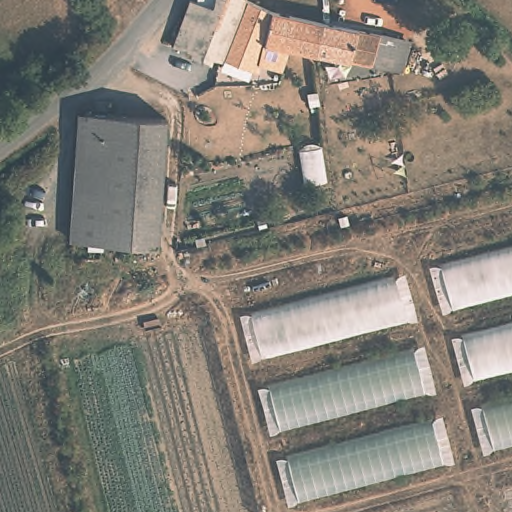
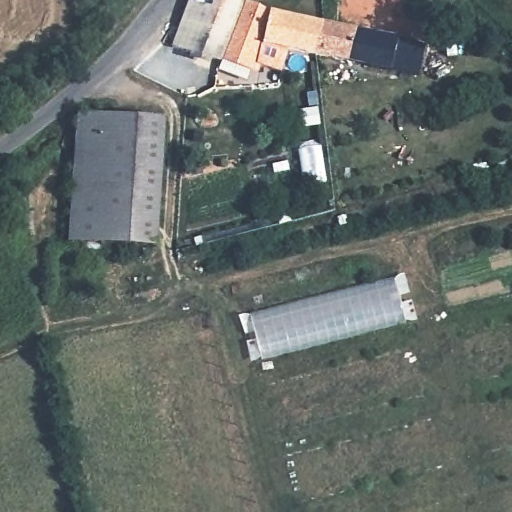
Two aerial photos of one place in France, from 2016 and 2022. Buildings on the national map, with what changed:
unchanged [(272,13),(301,19),(327,24),(320,56),(290,50),(286,64),(283,74),(261,67),(259,72),(223,61),(221,66),(171,50),(182,6),(183,2),(185,2),(212,10),(214,0),(244,0),(244,1),(272,13)]
unchanged [(320,56),(327,24),(400,37),(403,38),(397,71),(393,70),(320,56)]
unchanged [(163,197),(161,247),(124,246),(75,244),(81,111),(167,115),(165,160),(163,197)]
demolished [(432,266),(512,246),(512,293),(442,310),(432,266)]
unchanged [(420,319),(251,359),(241,316),(409,275),(420,319)]
demolished [(453,338),(512,324),(512,369),(467,381),(453,338)]
demolished [(437,390),(272,430),(260,387),(426,347),(437,390)]
demolished [(473,409),(512,400),(512,444),(484,451),(473,409)]
demolished [(455,460),(290,503),(279,460),(444,418),(455,460)]

